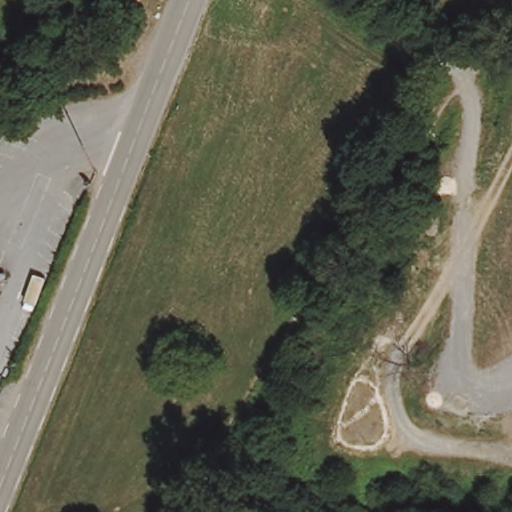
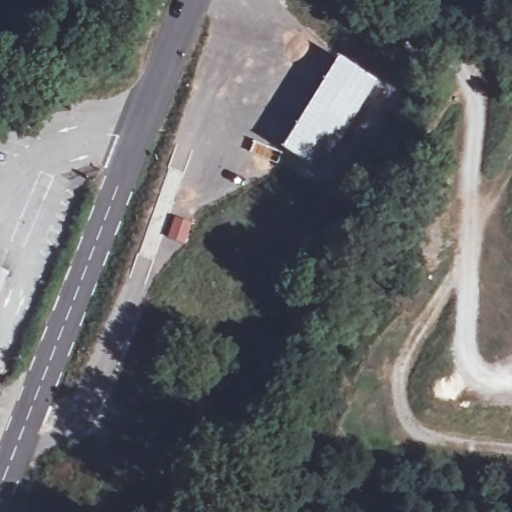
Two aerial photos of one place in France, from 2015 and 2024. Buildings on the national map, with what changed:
new [(340,58),(377,81),(318,170),(282,150),(340,58)]
unchanged [(0,268),(20,276),(0,326),(0,268)]

